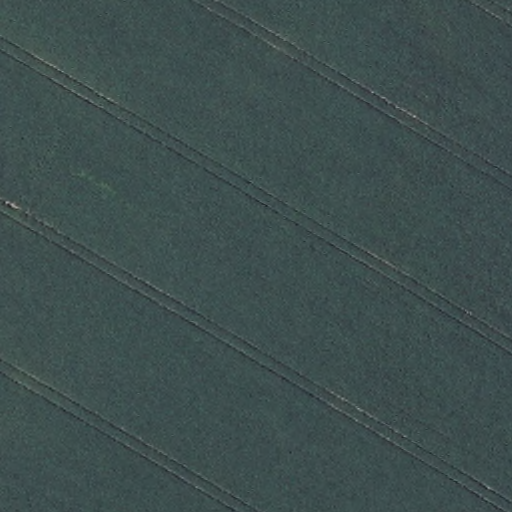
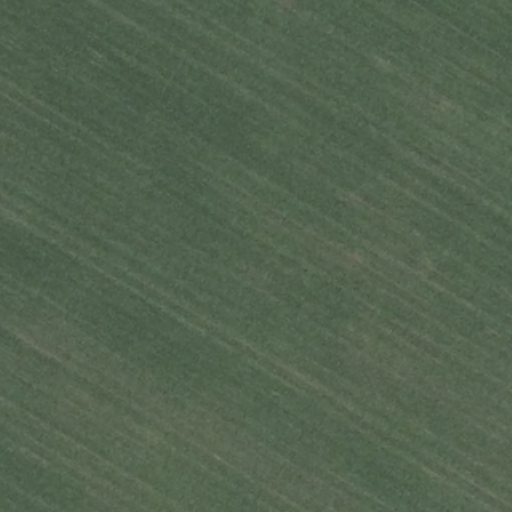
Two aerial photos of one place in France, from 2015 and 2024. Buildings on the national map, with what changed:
[]

